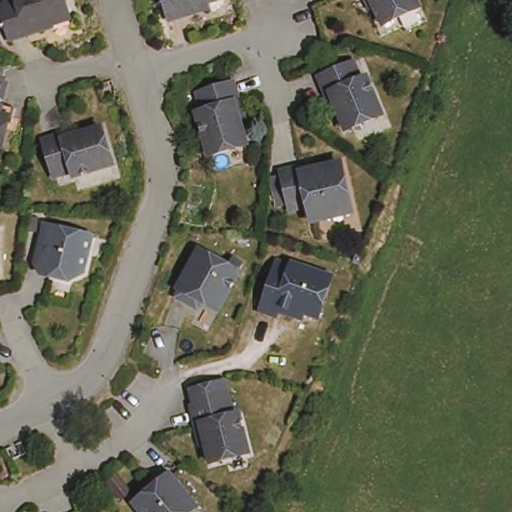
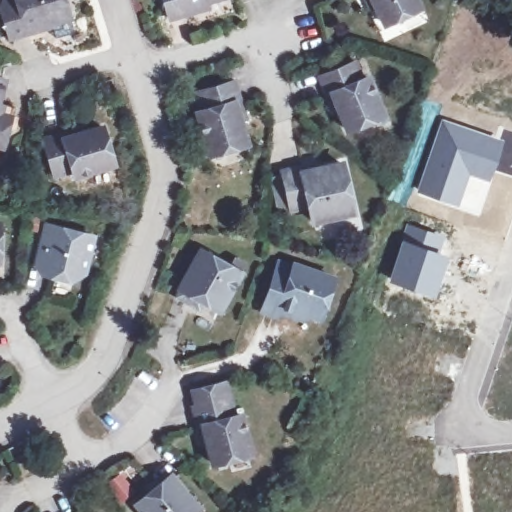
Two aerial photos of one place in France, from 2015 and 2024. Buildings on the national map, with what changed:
unchanged [(48,28),(49,31),(7,44),(0,20),(0,5),(2,1),(6,0),(60,0),(66,23),(48,28)]
unchanged [(165,19),(159,0),(203,0),(206,8),(193,11),(165,19)]
unchanged [(385,25),(372,0),(416,0),(420,8),(385,25)]
unchanged [(325,94),(317,76),(355,60),(362,78),(368,75),(385,114),(347,129),(339,111),(332,114),(325,94)]
unchanged [(5,80),(0,100),(0,79),(5,80)]
unchanged [(210,154),(197,111),(202,109),(197,90),(235,79),(240,99),(247,116),(238,119),(246,144),(210,154)]
unchanged [(18,108),(15,119),(7,116),(0,142),(0,104),(18,108)]
new [(460,209),(415,192),(440,118),(503,139),(490,183),(479,215),(460,209)]
unchanged [(115,169),(77,179),(75,174),(55,179),(45,140),(65,135),(84,130),(86,136),(105,131),(115,169)]
unchanged [(302,170),(342,161),(353,212),(313,221),(310,206),(290,209),(281,170),(301,165),(302,170)]
new [(407,222),(447,236),(440,252),(447,255),(433,297),(387,280),(407,222)]
unchanged [(1,226),(0,251),(0,226),(1,226)]
unchanged [(93,239),(85,275),(70,284),(50,278),(52,272),(36,268),(47,228),(93,239)]
unchanged [(190,309),(177,301),(177,294),(199,255),(228,272),(233,263),(242,269),(237,277),(240,279),(218,316),(203,308),(199,314),(190,309)]
unchanged [(293,318),(280,313),(277,319),(262,313),(280,265),(293,270),(295,265),(335,282),(320,320),(310,317),(306,324),(293,318)]
unchanged [(192,424),(187,404),(190,403),(187,389),(222,379),(225,394),(230,414),(237,412),(247,453),(208,462),(205,443),(197,444),(192,424)]
unchanged [(6,451),(20,444),(27,458),(13,465),(6,451)]
unchanged [(197,512),(140,512),(135,506),(170,478),(197,512)]

